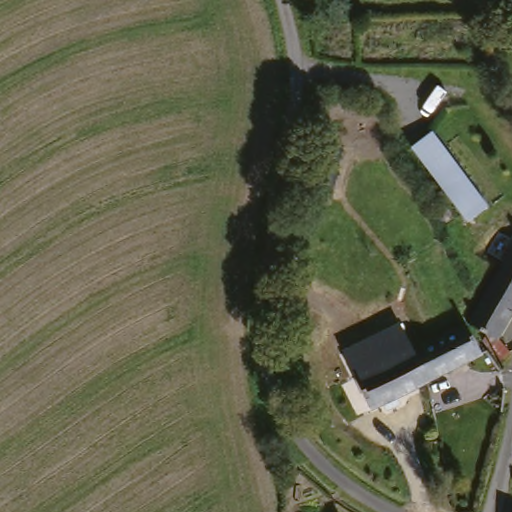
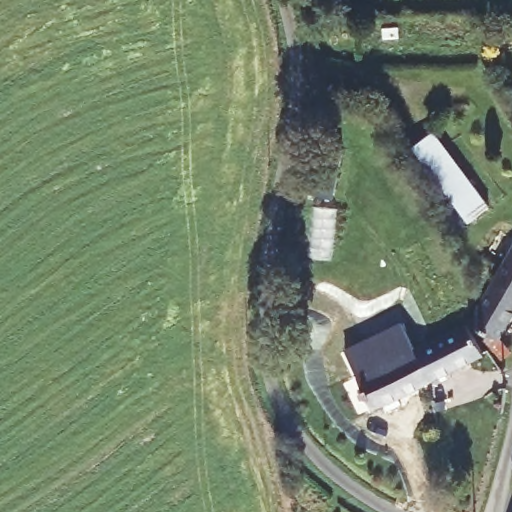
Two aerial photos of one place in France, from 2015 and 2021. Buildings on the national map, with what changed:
unchanged [(464,226),(410,153),(431,135),(485,209),(464,226)]
unchanged [(512,308),(487,341),(501,353),(492,364),(477,351),(485,341),(462,323),(512,260),(512,308)]
unchanged [(340,348),(393,325),(406,353),(419,382),(369,407),(340,348)]
unchanged [(440,337),(458,328),(473,357),(419,382),(406,353),(440,337)]
unchanged [(512,509),(512,512),(510,512),(512,509)]

